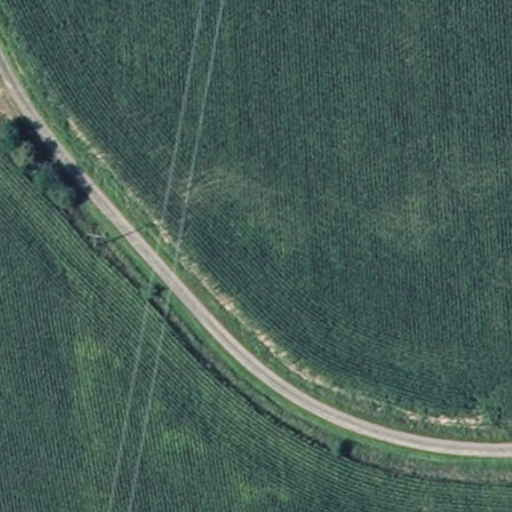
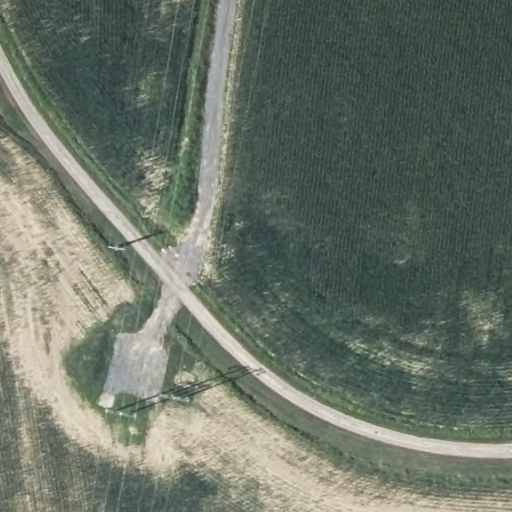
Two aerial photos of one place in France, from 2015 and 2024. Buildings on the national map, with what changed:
[]

